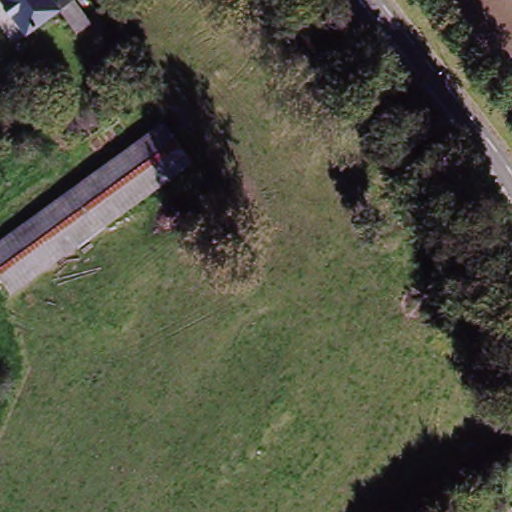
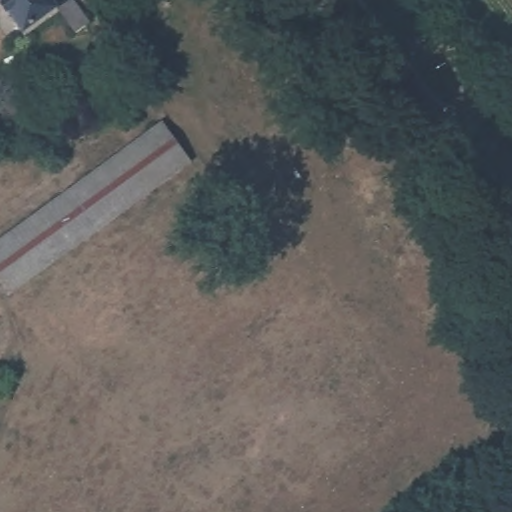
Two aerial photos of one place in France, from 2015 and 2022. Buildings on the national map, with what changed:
unchanged [(28,36),(2,0),(73,0),(74,1),(93,26),(77,38),(57,13),(28,36)]
unchanged [(0,271),(0,243),(170,121),(197,161),(15,292),(0,271)]

